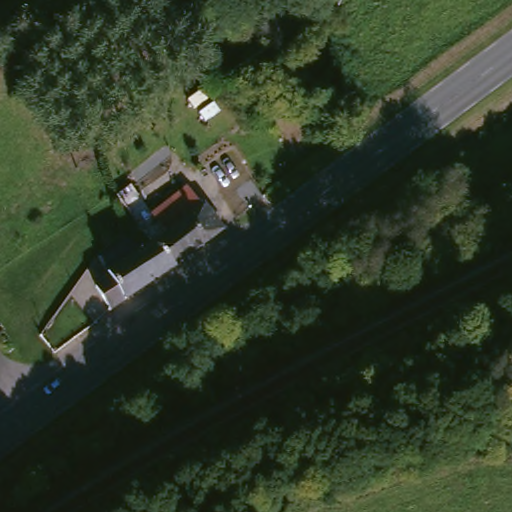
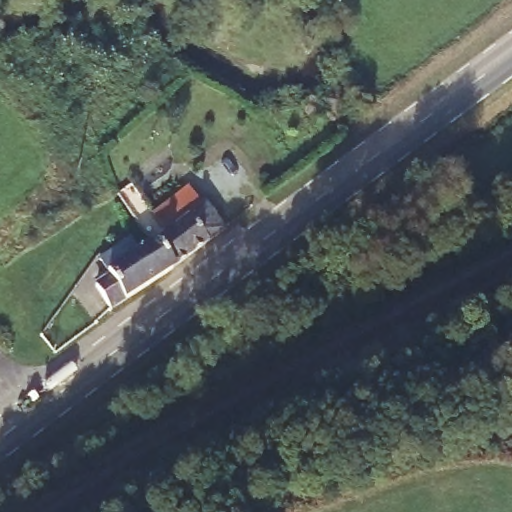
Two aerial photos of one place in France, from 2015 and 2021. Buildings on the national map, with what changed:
unchanged [(83,292),(111,271),(101,256),(130,234),(141,250),(153,241),(154,241),(144,229),(156,220),(150,214),(188,186),(206,212),(221,231),(173,267),(161,276),(103,320),(83,292)]

